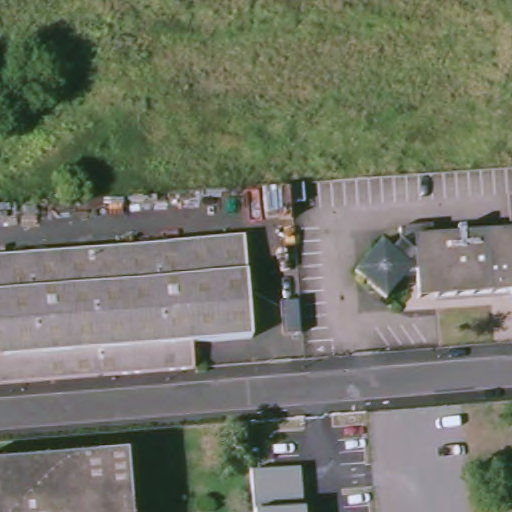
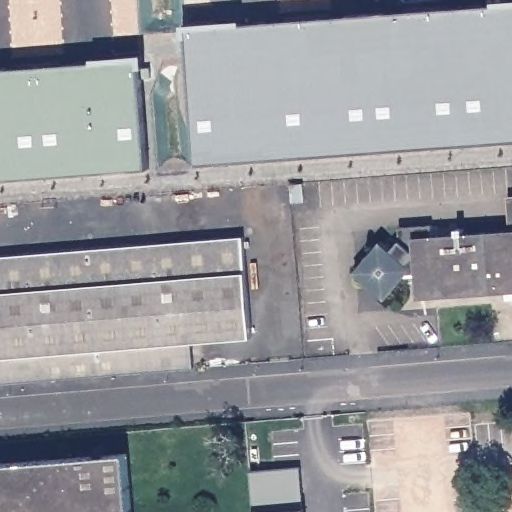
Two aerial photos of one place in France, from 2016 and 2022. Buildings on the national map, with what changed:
new [(196,167),(182,36),(512,14),(512,144),(196,167)]
new [(0,75),(135,65),(142,170),(0,181),(0,75)]
unchanged [(512,228),(512,299),(507,300),(506,292),(415,300),(414,273),(405,274),(385,300),(352,273),(380,241),(391,250),(398,240),(397,227),(430,225),(432,234),(510,229),(512,228)]
unchanged [(192,366),(0,384),(0,256),(241,235),(250,336),(190,341),(192,366)]
unchanged [(129,512),(0,512),(0,460),(123,450),(129,512)]
unchanged [(304,512),(252,512),(252,511),(248,470),(298,465),(303,507),(304,512)]

